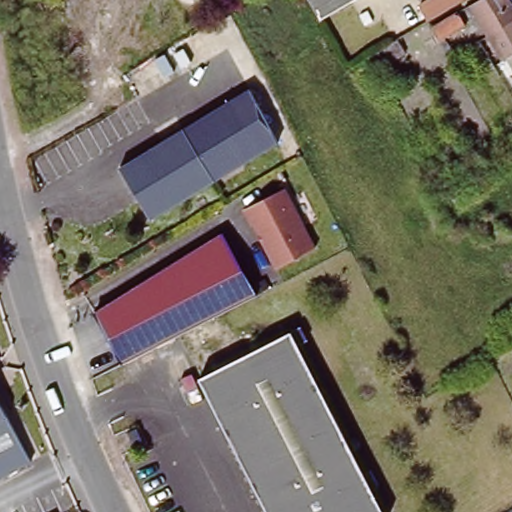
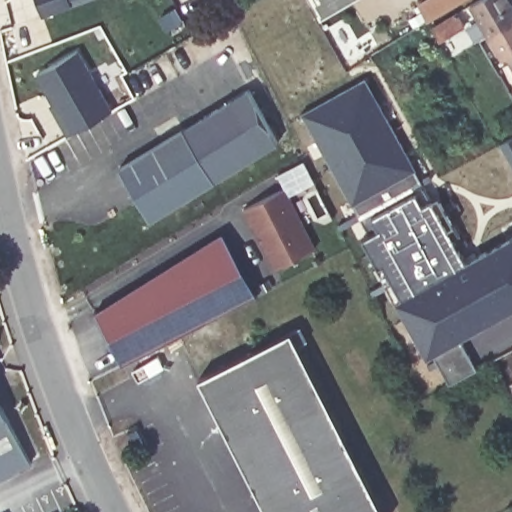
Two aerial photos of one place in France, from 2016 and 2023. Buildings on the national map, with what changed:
new [(72,6),(42,16),(36,0),(85,0),(72,6)]
unchanged [(322,20),(310,0),(356,0),(322,20)]
unchanged [(413,6),(423,0),(458,0),(423,21),(413,6)]
unchanged [(470,13),(464,17),(460,9),(474,0),(504,0),(512,14),(512,19),(483,36),(470,13)]
unchanged [(460,26),(435,41),(427,28),(452,13),(460,26)]
unchanged [(498,60),(483,36),(512,19),(512,74),(502,58),(498,60)]
new [(71,134),(37,75),(78,52),(112,111),(71,134)]
new [(365,79),(413,170),(350,203),(300,114),(365,79)]
unchanged [(146,225),(115,173),(180,135),(245,95),(277,147),(210,186),(146,225)]
new [(432,201),(467,263),(511,239),(512,236),(512,308),(487,323),(461,338),(477,370),(449,384),(433,354),(425,358),(408,329),(411,328),(397,302),(393,305),(375,268),(377,266),(362,238),(368,236),(350,203),(413,170),(432,201)]
unchanged [(315,247),(271,269),(242,211),(284,189),(315,247)]
unchanged [(255,294),(122,363),(95,314),(220,233),(255,294)]
unchanged [(268,512),(202,384),(292,337),(382,512),(268,512)]
unchanged [(32,461),(0,478),(0,402),(2,407),(32,461)]
unchanged [(143,442),(134,447),(128,433),(137,429),(143,442)]

